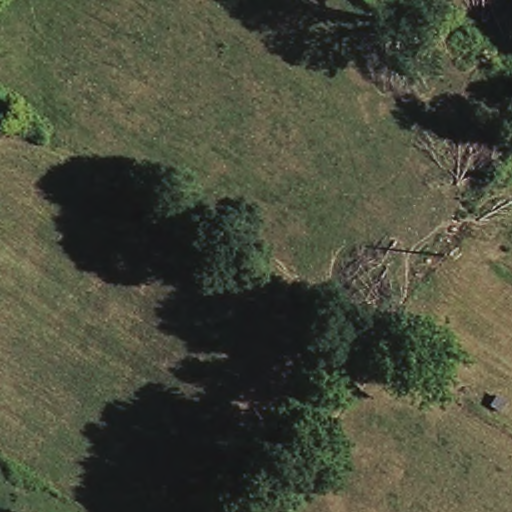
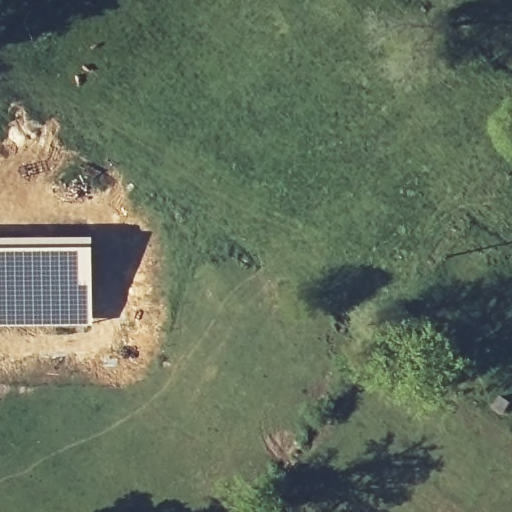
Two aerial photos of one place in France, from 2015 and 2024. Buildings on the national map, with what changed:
new [(92,235),(92,326),(0,327),(0,234),(92,235)]

